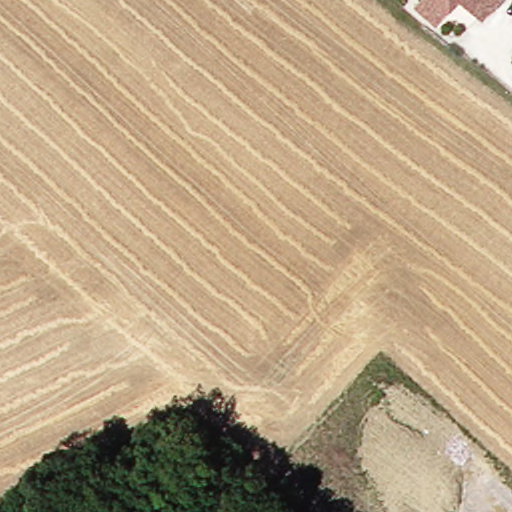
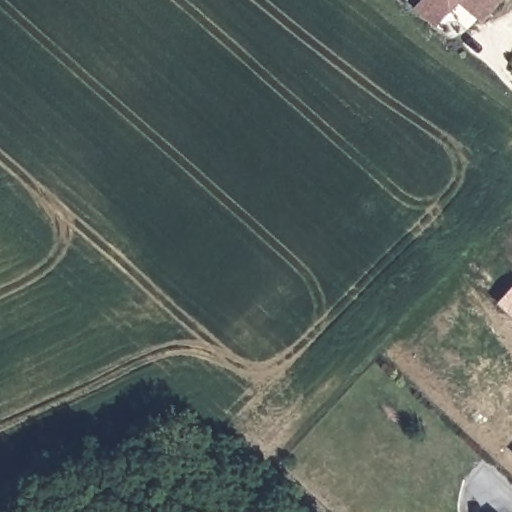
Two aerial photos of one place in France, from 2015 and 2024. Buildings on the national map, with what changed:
unchanged [(412,9),(420,0),(496,0),(477,21),(457,3),(434,28),(412,9)]
new [(498,302),(512,286),(512,314),(498,302)]

